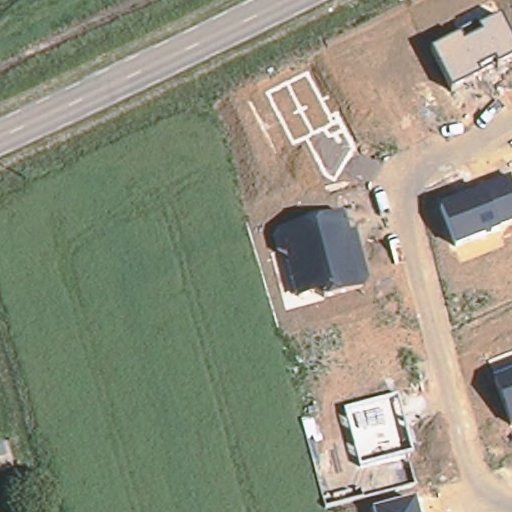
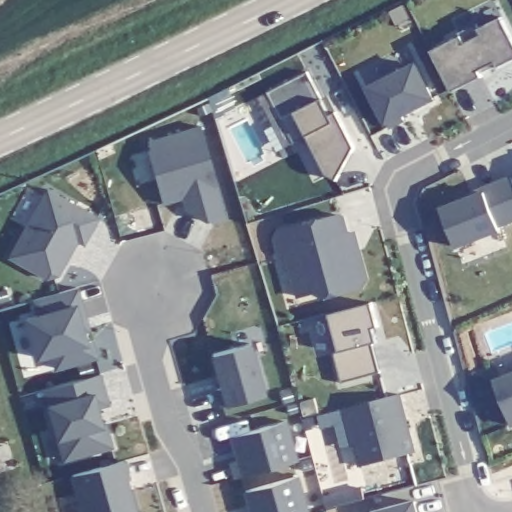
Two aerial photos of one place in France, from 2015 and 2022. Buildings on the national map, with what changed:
unchanged [(501,15),(512,37),(512,58),(452,93),(431,53),(501,15)]
unchanged [(415,65),(433,99),(402,115),(404,120),(389,128),(369,89),(415,65)]
new [(307,72),(330,115),(337,112),(355,148),(337,180),(327,175),(307,136),(294,144),(267,93),(307,72)]
new [(227,216),(207,222),(185,210),(182,201),(163,206),(147,149),(150,149),(147,140),(200,125),(227,216)]
unchanged [(484,192),(511,180),(512,183),(512,225),(500,230),(456,248),(440,211),(484,192)]
new [(100,218),(85,245),(79,243),(60,276),(48,281),(7,259),(47,188),(100,218)]
unchanged [(285,257),(275,254),(272,241),(278,230),(344,211),(350,233),(357,231),(369,278),(365,288),(321,301),(318,293),(295,299),(285,257)]
new [(92,330),(85,334),(87,342),(95,339),(101,359),(55,372),(52,356),(36,361),(25,317),(38,314),(34,300),(80,290),(92,330)]
new [(380,328),(374,329),(377,343),(374,344),(380,374),(342,384),(334,354),(337,354),(327,315),(329,314),(372,303),(380,328)]
new [(267,393),(227,406),(221,408),(215,391),(220,389),(210,355),(252,342),(267,393)]
unchanged [(512,372),(512,427),(511,428),(493,379),(512,372)]
new [(102,373),(112,404),(100,409),(105,426),(107,423),(114,448),(64,463),(57,440),(47,405),(43,391),(102,373)]
new [(398,394),(414,453),(360,467),(345,409),(398,394)]
new [(298,461),(234,479),(229,464),(237,462),(230,438),(288,421),(298,461)]
new [(139,512),(82,512),(72,476),(126,462),(139,512)]
new [(244,493),(298,476),(309,512),(249,512),(244,493)]
unchanged [(374,511),(416,499),(419,512),(374,512),(374,511)]

